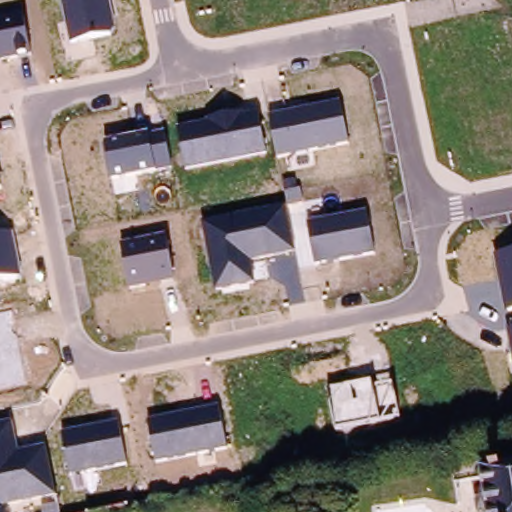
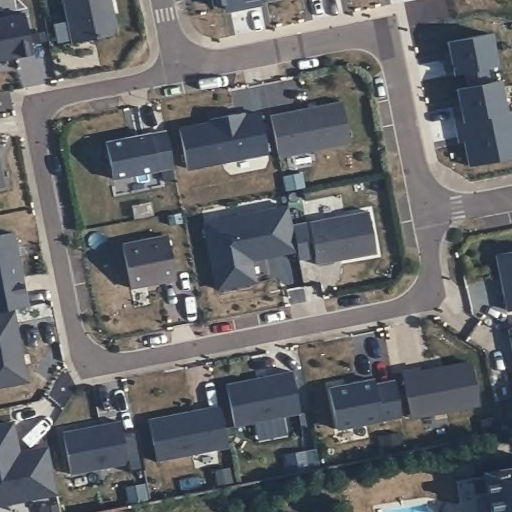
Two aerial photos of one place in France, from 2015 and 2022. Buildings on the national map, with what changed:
unchanged [(61,0),(109,0),(115,30),(110,34),(70,42),(61,0)]
new [(261,5),(231,11),(230,2),(213,6),(212,0),(260,0),(261,5)]
unchanged [(23,17),(31,56),(0,62),(0,20),(23,17)]
new [(463,87),(460,72),(445,75),(443,59),(451,57),(448,41),(491,33),(497,66),(485,67),(488,82),(500,81),(505,112),(512,111),(512,158),(470,165),(465,135),(456,136),(451,106),(460,105),(456,88),(463,87)]
unchanged [(350,144),(278,157),(270,116),(340,102),(350,144)]
unchanged [(187,170),(180,126),(257,112),(265,154),(187,170)]
unchanged [(113,180),(105,141),(149,133),(150,135),(163,132),(171,167),(113,180)]
unchanged [(1,187),(0,187),(0,182),(1,187)]
unchanged [(215,290),(201,221),(285,206),(295,252),(251,261),(255,282),(215,290)]
unchanged [(307,222),(366,212),(375,253),(315,264),(307,222)]
new [(13,232),(25,297),(0,302),(0,234),(13,232)]
unchanged [(130,287),(121,242),(165,236),(173,279),(130,287)]
unchanged [(512,252),(512,310),(505,311),(495,255),(512,252)]
new [(25,297),(26,307),(14,311),(28,382),(0,387),(0,302),(25,297)]
unchanged [(512,356),(506,330),(512,328),(512,356)]
new [(418,367),(419,370),(470,361),(478,402),(410,416),(402,370),(418,367)]
new [(293,371),(302,415),(236,428),(228,384),(293,371)]
unchanged [(371,380),(373,387),(393,383),(400,417),(337,428),(330,388),(371,380)]
unchanged [(148,420),(217,406),(226,446),(156,460),(148,420)]
unchanged [(55,495),(0,505),(0,425),(12,422),(19,451),(45,446),(55,495)]
unchanged [(62,432),(117,423),(125,465),(70,473),(62,432)]
unchanged [(478,493),(481,492),(486,491),(483,470),(512,465),(512,512),(477,512),(475,497),(478,493)]

